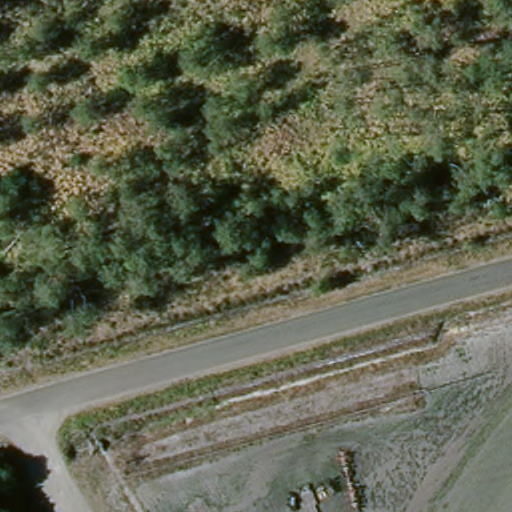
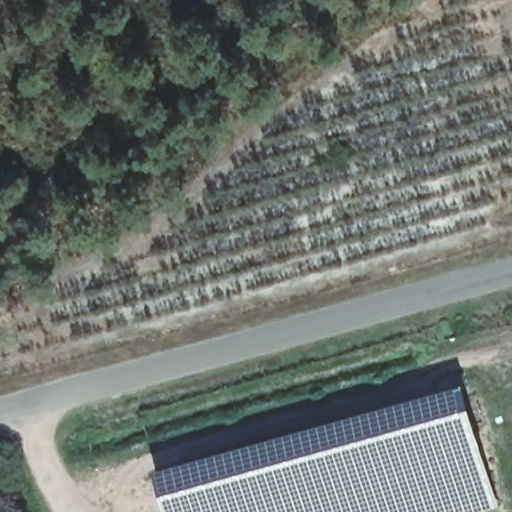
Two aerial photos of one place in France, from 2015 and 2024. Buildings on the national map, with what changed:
new [(501,507),(483,512),(171,512),(159,471),(467,386),(473,409),(501,507)]

